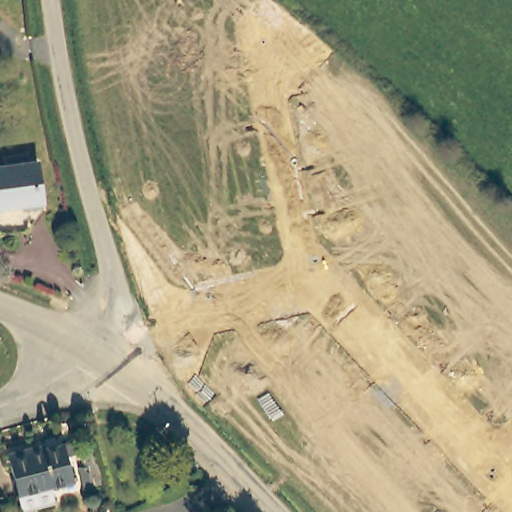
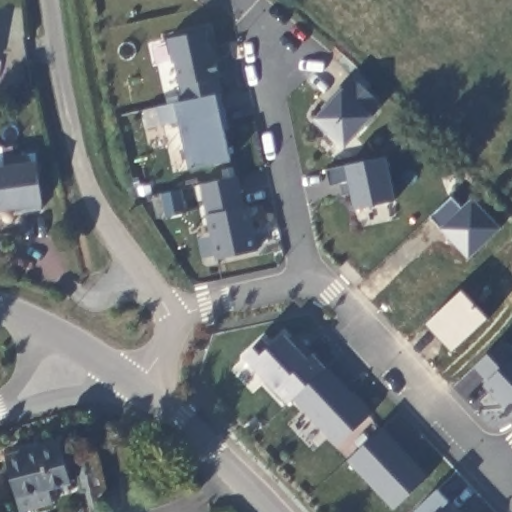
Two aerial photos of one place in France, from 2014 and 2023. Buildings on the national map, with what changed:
new [(190,170),(179,121),(162,125),(157,107),(176,103),(185,101),(175,61),(172,62),(168,37),(207,31),(211,48),(215,47),(220,77),(229,128),(225,129),(231,160),(190,170)]
new [(369,112),(373,116),(345,145),(331,131),(328,134),(313,122),(330,102),(328,100),(341,87),(344,89),(354,78),(380,102),(369,112)]
unchanged [(5,155),(24,154),(24,168),(36,167),(41,207),(0,209),(0,168),(5,167),(5,155)]
new [(396,200),(355,207),(352,192),(343,194),(341,184),(330,185),(327,169),(385,157),(396,200)]
new [(217,259),(208,215),(201,185),(238,176),(246,208),(250,207),(260,251),(217,259)]
new [(295,398),(287,404),(276,388),(245,357),(265,337),(275,343),(285,333),(308,358),(313,353),(326,367),(295,398)]
new [(484,383),(487,380),(475,366),(503,341),(512,350),(512,413),(484,383)]
new [(339,445),(295,398),(326,367),(370,415),(339,445)]
new [(395,509),(348,460),(382,427),(428,477),(395,509)]
unchanged [(24,451),(24,455),(60,450),(65,484),(10,495),(2,454),(24,451)]
new [(450,498),(463,512),(436,512),(450,498)]

